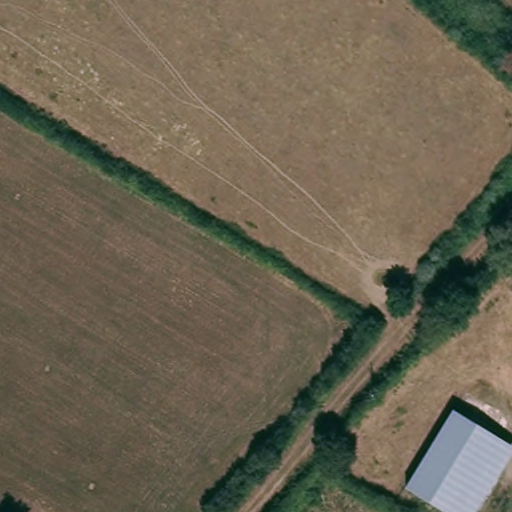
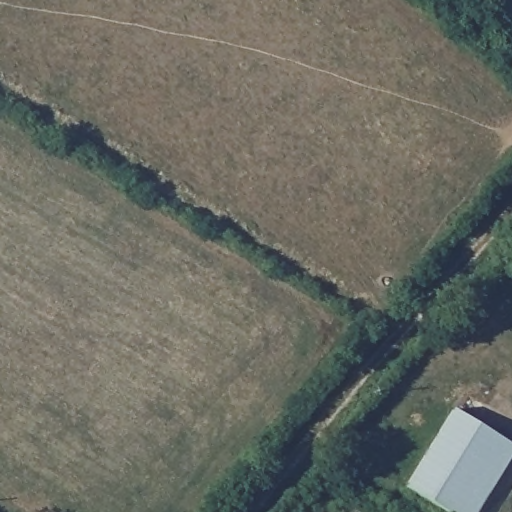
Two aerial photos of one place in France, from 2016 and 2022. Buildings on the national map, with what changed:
unchanged [(512,458),(477,512),(457,512),(411,482),(460,406),(512,440),(512,458)]

